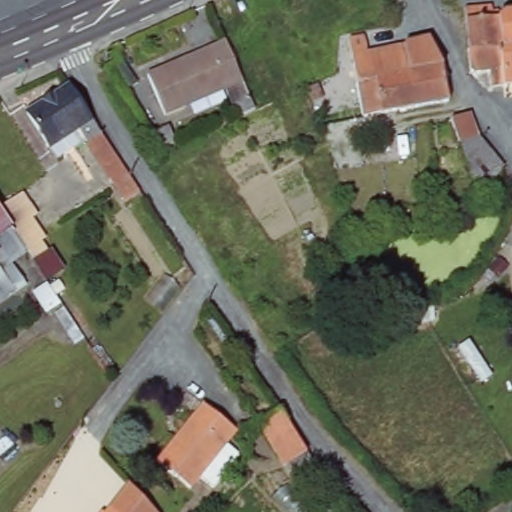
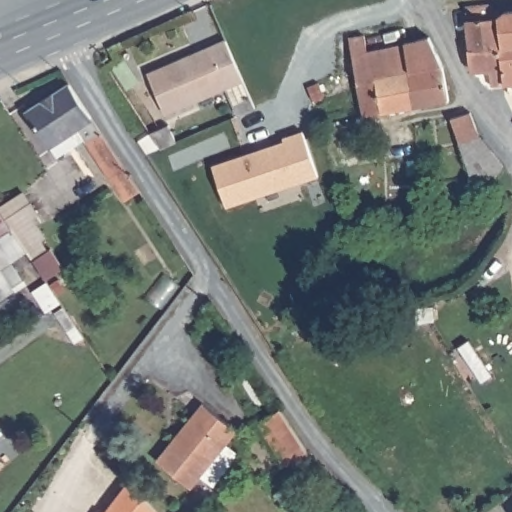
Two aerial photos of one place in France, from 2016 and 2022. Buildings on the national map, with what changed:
unchanged [(489,11),(490,22),(496,21),(505,90),(492,91),(488,76),(470,78),(467,72),(461,15),(489,11)]
unchanged [(505,11),(512,11),(512,89),(505,90),(496,21),(505,11)]
unchanged [(355,80),(348,40),(363,37),(366,54),(380,51),(405,48),(410,75),(413,98),(415,110),(379,115),(361,118),(355,80)]
unchanged [(221,41),(247,109),(230,116),(219,89),(165,112),(147,72),(221,41)]
unchanged [(405,48),(432,45),(442,68),(446,97),(447,105),(415,110),(413,98),(410,75),(405,48)]
unchanged [(68,86),(134,190),(120,200),(79,139),(51,155),(45,145),(25,115),(68,86)]
unchanged [(495,172),(487,184),(468,171),(457,139),(451,116),(470,111),(476,133),(501,165),(495,172)]
unchanged [(165,129),(173,144),(157,151),(147,136),(165,129)]
new [(317,176),(226,208),(212,165),(284,141),(282,137),(301,131),(317,176)]
unchanged [(36,217),(31,220),(44,239),(38,242),(47,255),(34,265),(25,253),(0,215),(0,209),(22,195),(36,217)]
unchanged [(0,270),(0,215),(25,253),(0,270)]
unchanged [(0,304),(0,271),(15,294),(0,304)]
unchanged [(235,432),(219,450),(234,462),(212,486),(197,475),(186,488),(154,460),(203,405),(235,432)]
unchanged [(280,410),(308,452),(286,465),(270,442),(258,425),(280,410)]

